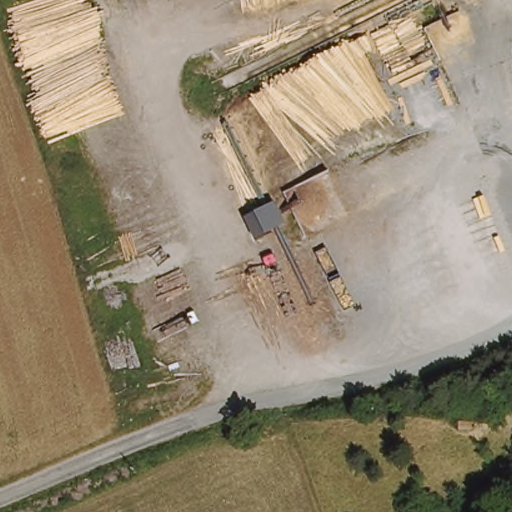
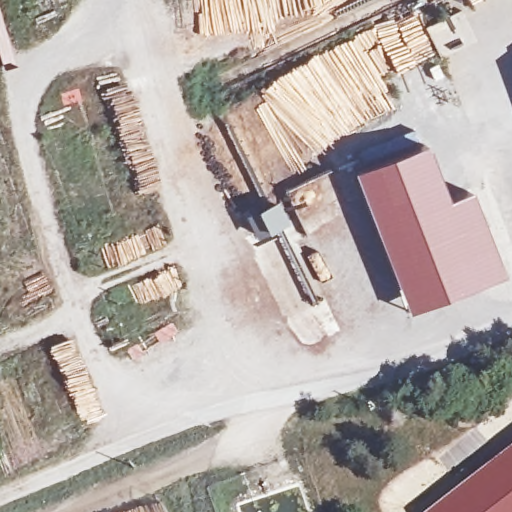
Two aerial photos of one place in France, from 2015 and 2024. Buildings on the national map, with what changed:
new [(424,141),(448,199),(470,191),(504,275),(408,312),(351,170),(424,141)]
new [(279,200),(289,220),(265,231),(254,210),(279,200)]
new [(426,512),(512,448),(512,512),(426,512)]

